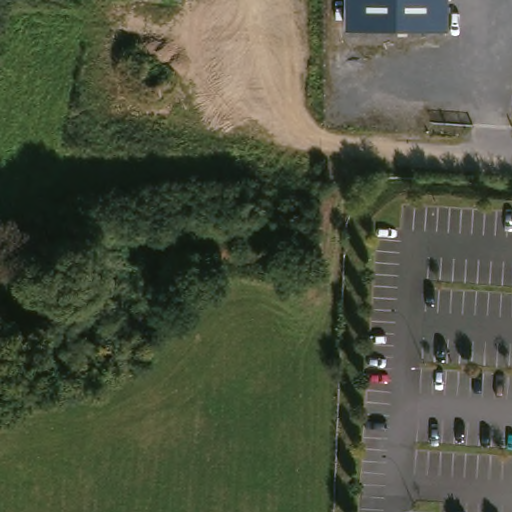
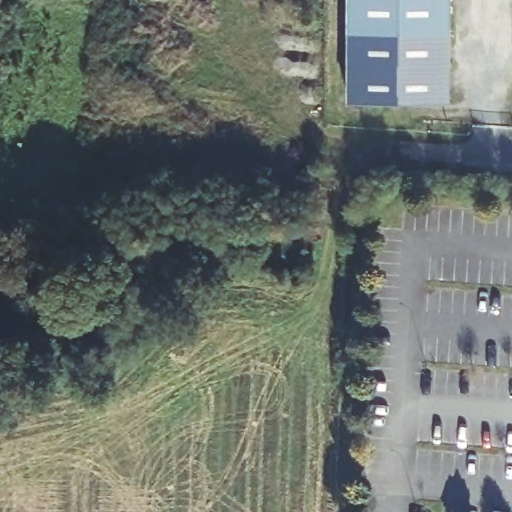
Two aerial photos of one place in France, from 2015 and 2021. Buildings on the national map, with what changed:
unchanged [(347,29),(348,0),(450,0),(450,31),(347,29)]
new [(450,31),(450,100),(347,100),(347,29),(450,31)]

